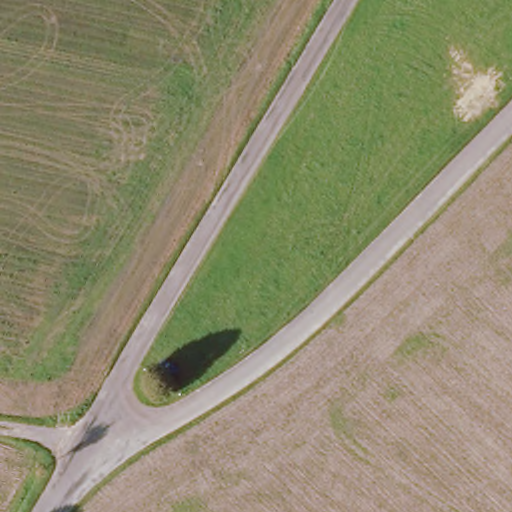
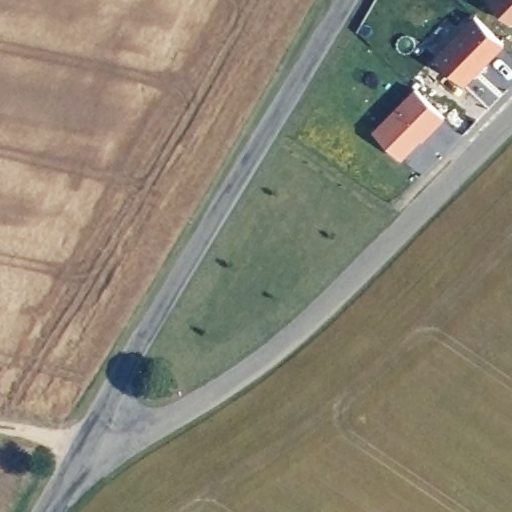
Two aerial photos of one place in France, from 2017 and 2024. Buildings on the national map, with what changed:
new [(509,22),(486,0),(512,0),(512,21),(509,22)]
new [(475,15),(505,45),(465,86),(435,56),(475,15)]
new [(373,131),(415,88),(445,118),(403,161),(373,131)]

